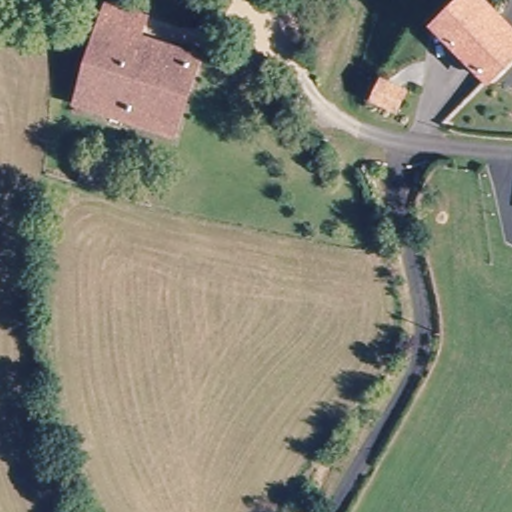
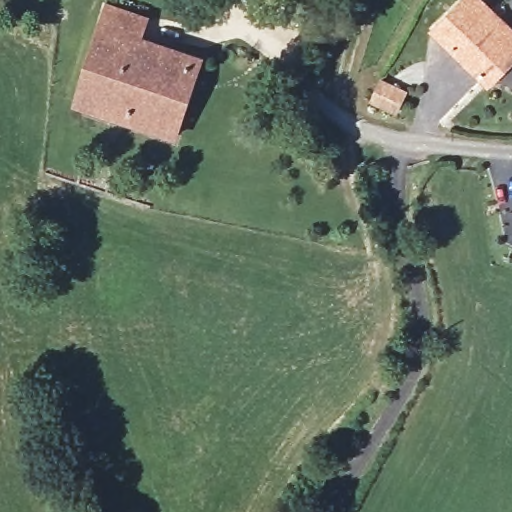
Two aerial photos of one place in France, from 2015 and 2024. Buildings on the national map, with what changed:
unchanged [(152,0),(146,17),(105,6),(107,0),(152,0)]
unchanged [(482,87),(441,25),(477,0),(490,0),(506,22),(498,28),(511,46),(512,47),(512,66),(503,72),(482,87)]
unchanged [(212,37),(179,137),(71,104),(105,6),(146,17),(212,37)]

